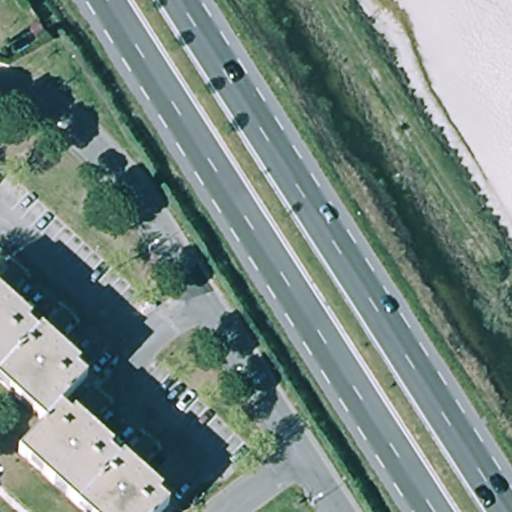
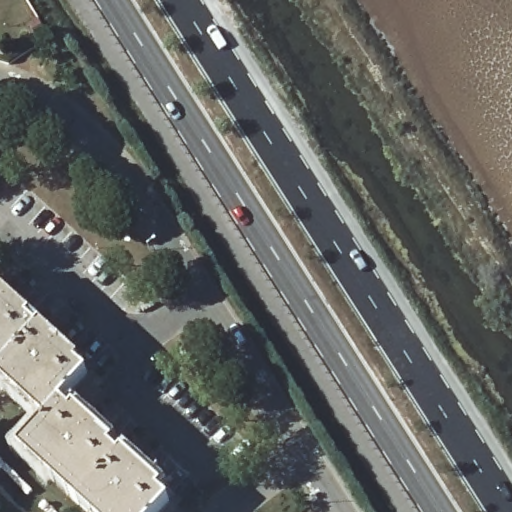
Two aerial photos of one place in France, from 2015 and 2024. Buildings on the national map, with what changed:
unchanged [(22,456),(46,427),(0,385),(0,291),(32,320),(28,325),(40,337),(45,332),(81,364),(77,369),(88,380),(62,409),(73,419),(78,415),(114,449),(110,453),(122,464),(127,459),(163,492),(158,497),(170,508),(166,512),(84,512),(22,456)]

